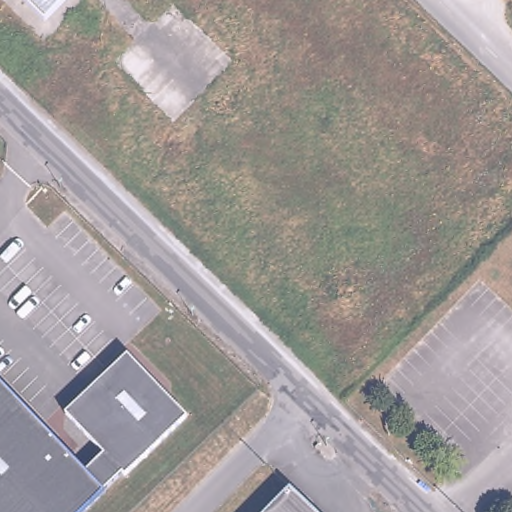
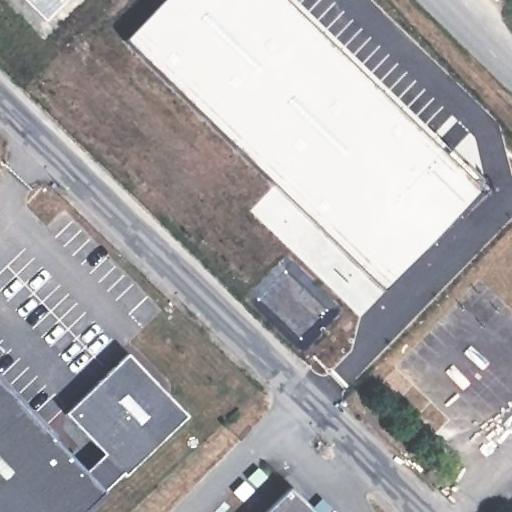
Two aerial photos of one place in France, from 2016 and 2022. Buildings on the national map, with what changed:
unchanged [(32,0),(59,0),(46,14),(32,0)]
new [(162,0),(284,0),(482,190),(380,292),(121,42),(162,0)]
unchanged [(122,471),(105,488),(106,489),(81,512),(0,512),(0,379),(86,468),(103,451),(65,411),(127,352),(169,396),(186,414),(125,473),(122,471)]
unchanged [(319,512),(265,512),(292,485),(319,512)]

